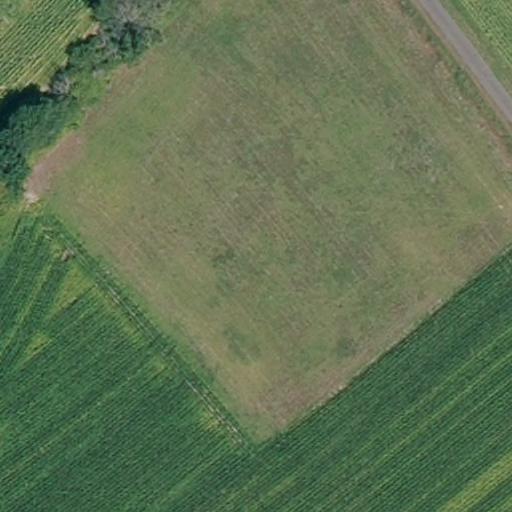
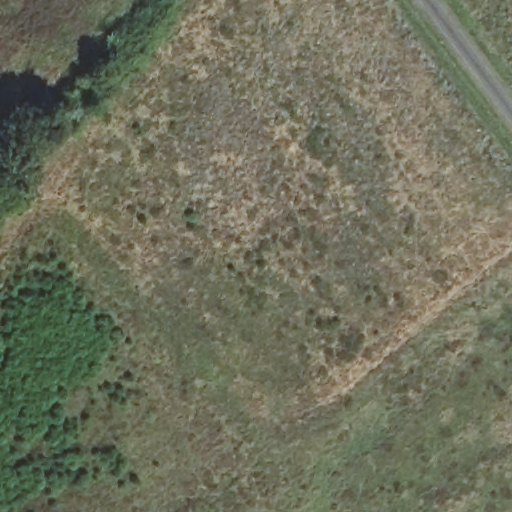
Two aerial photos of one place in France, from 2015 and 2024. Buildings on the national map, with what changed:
[]

